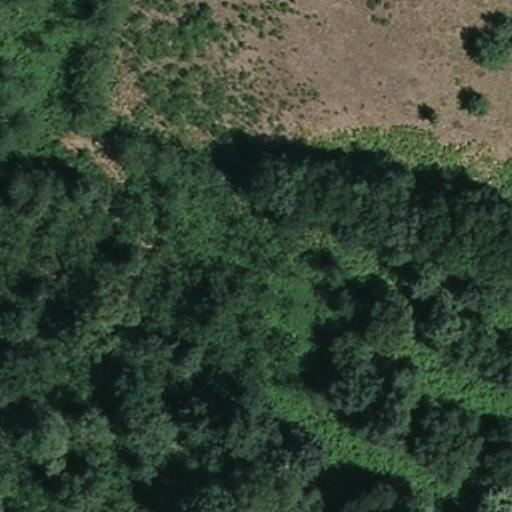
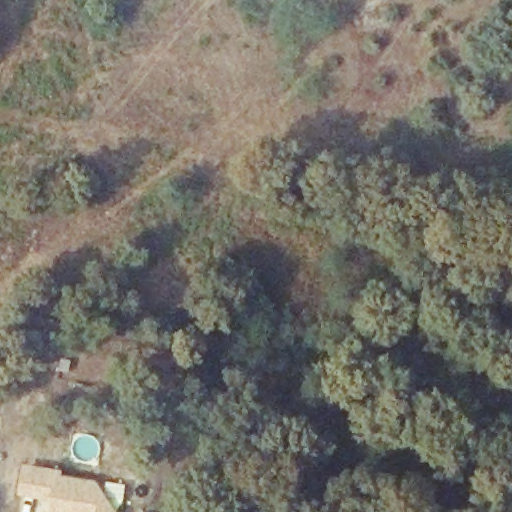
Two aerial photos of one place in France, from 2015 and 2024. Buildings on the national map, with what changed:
new [(18,496),(23,465),(63,471),(62,477),(96,482),(117,512),(48,512),(50,501),(18,496)]

